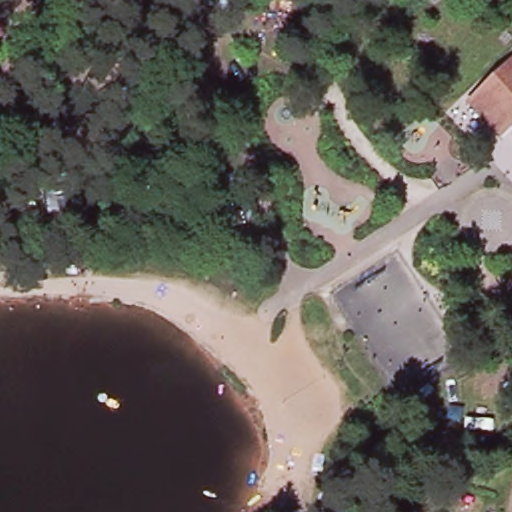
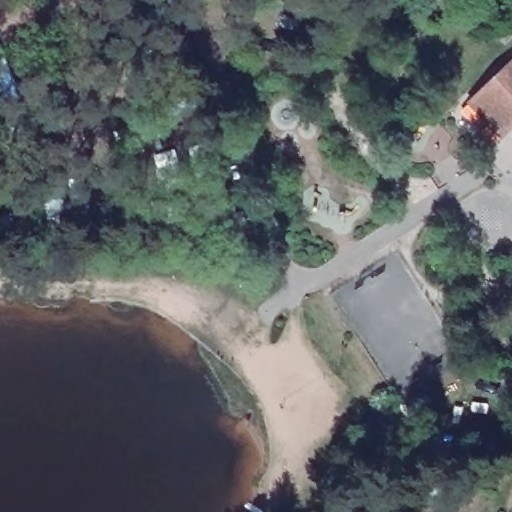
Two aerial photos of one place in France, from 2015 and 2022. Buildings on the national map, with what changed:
unchanged [(467,104),(512,59),(512,128),(503,138),(467,104)]

